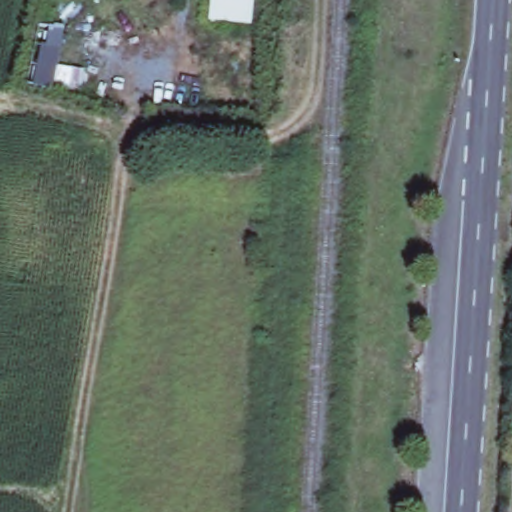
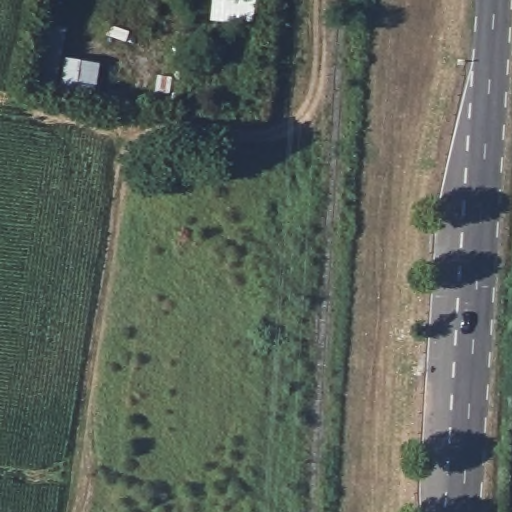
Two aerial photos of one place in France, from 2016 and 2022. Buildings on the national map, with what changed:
unchanged [(255,24),(214,20),(217,0),(258,0),(255,24)]
unchanged [(87,72),(84,93),(51,87),(54,65),(87,72)]

